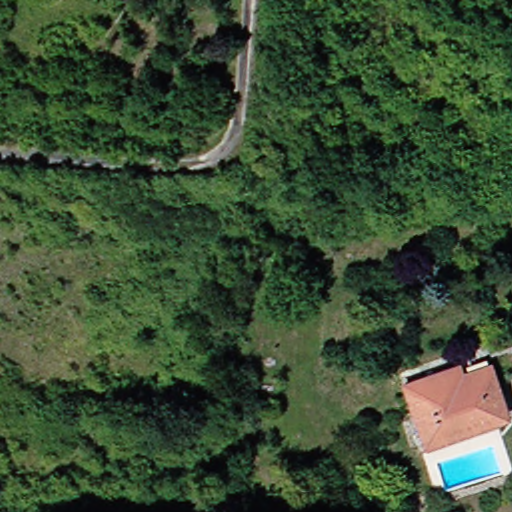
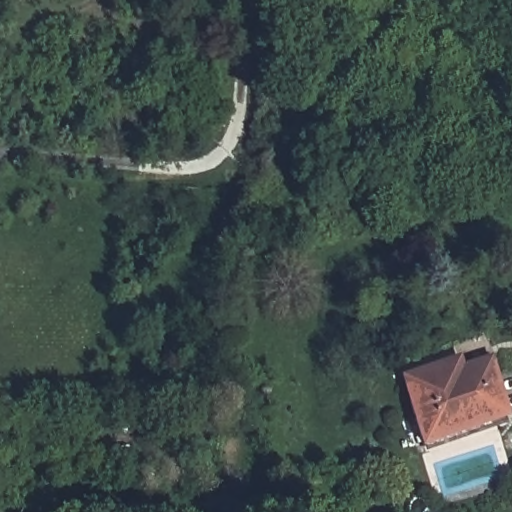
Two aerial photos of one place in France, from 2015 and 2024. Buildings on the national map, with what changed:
unchanged [(464,376),(489,366),(512,415),(512,419),(436,452),(408,387),(460,366),(464,376)]

